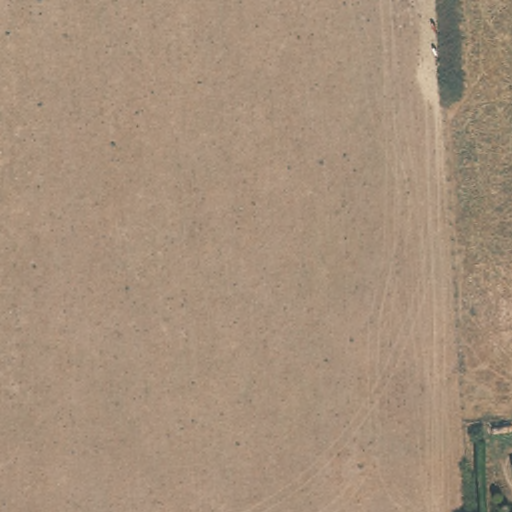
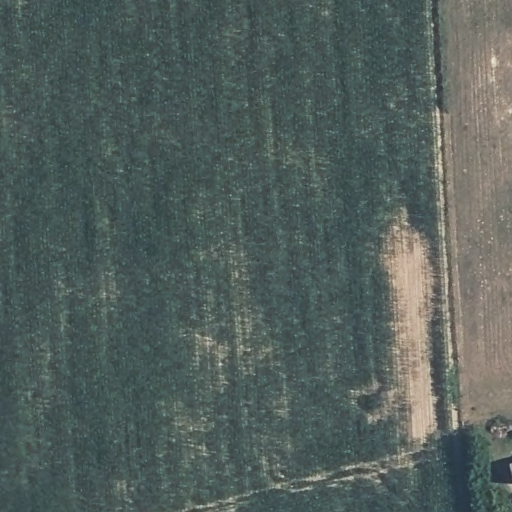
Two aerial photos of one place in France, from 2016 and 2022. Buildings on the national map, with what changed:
unchanged [(512,467),(512,475),(510,468),(512,467)]

